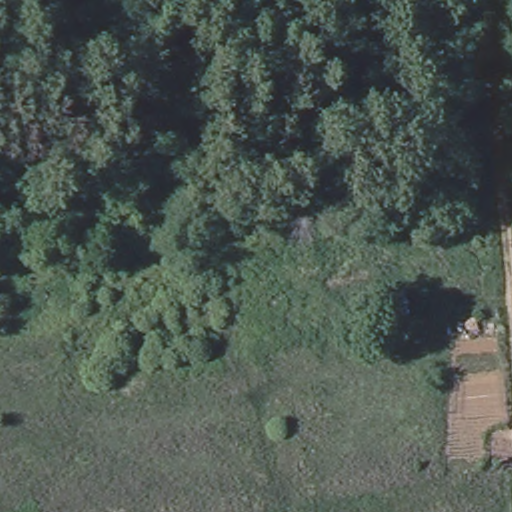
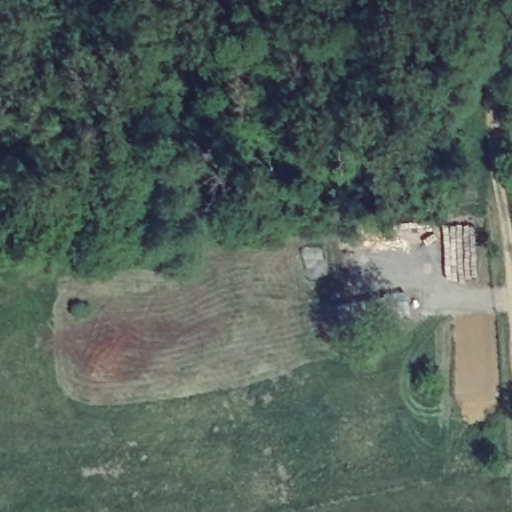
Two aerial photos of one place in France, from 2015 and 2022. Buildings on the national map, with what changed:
unchanged [(412,312),(413,332),(381,334),(380,314),(412,312)]

